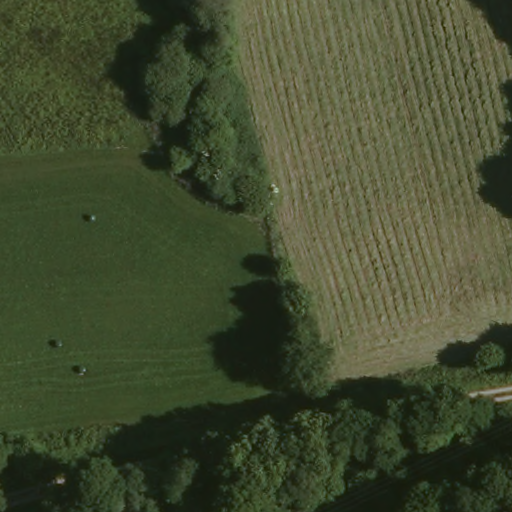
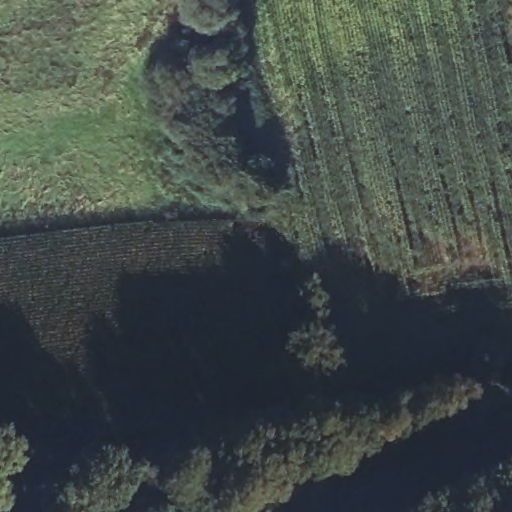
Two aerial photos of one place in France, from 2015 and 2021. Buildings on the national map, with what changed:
[]

